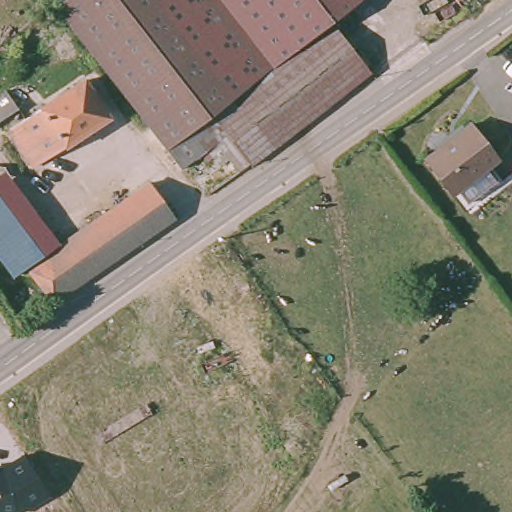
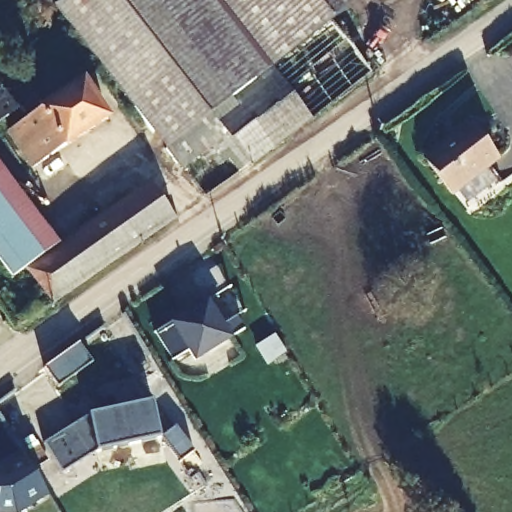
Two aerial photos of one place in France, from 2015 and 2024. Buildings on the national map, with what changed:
unchanged [(251,164),(249,162),(241,169),(229,157),(220,166),(209,150),(183,168),(166,148),(55,5),(61,0),(316,0),(372,72),(251,164)]
new [(330,19),(316,0),(356,0),(330,19)]
unchanged [(110,116),(35,165),(9,125),(82,76),(110,116)]
unchanged [(0,118),(0,91),(5,87),(18,106),(0,118)]
unchanged [(445,196),(416,157),(465,121),(494,160),(481,169),(490,182),(460,205),(450,192),(445,196)]
unchanged [(146,183),(173,218),(55,301),(25,260),(11,271),(0,255),(0,184),(49,250),(146,183)]
new [(208,299),(222,322),(235,314),(244,329),(232,339),(194,364),(186,350),(172,359),(156,332),(170,325),(208,299)]
new [(65,473),(45,442),(85,416),(83,411),(110,395),(118,408),(153,400),(160,438),(96,451),(65,473)]
unchanged [(22,512),(0,512),(0,465),(5,465),(23,453),(49,493),(22,512)]

